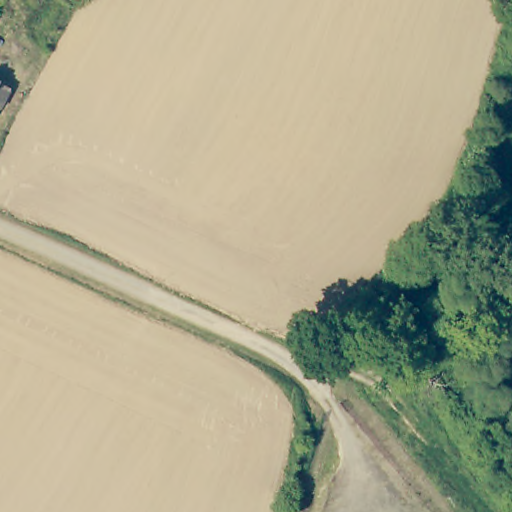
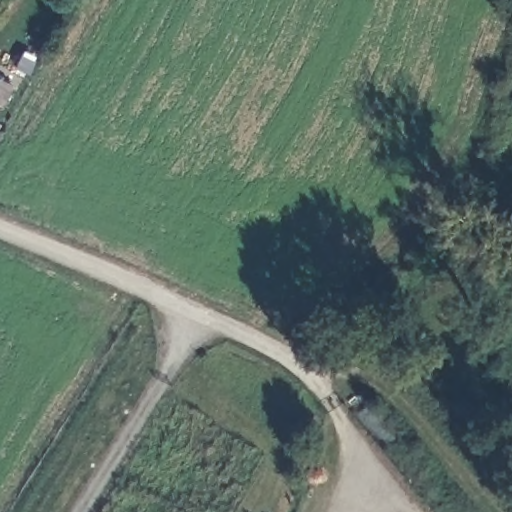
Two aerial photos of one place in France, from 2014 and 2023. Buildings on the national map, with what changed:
unchanged [(0,107),(0,81),(12,87),(2,107),(0,107)]

